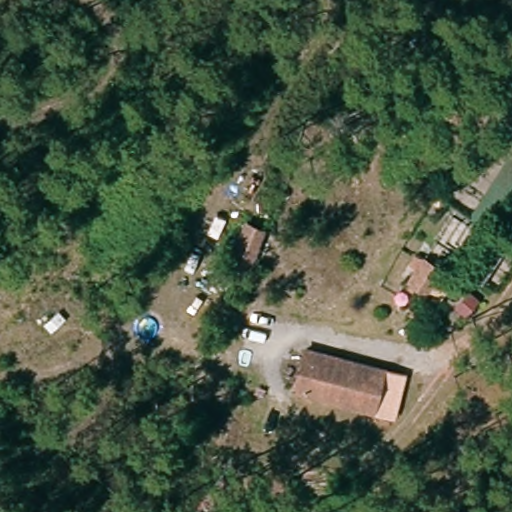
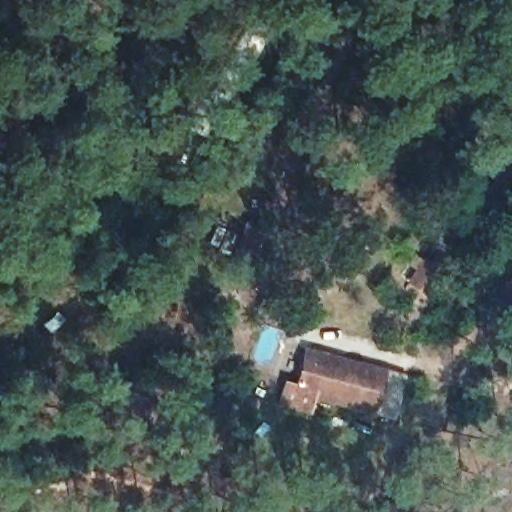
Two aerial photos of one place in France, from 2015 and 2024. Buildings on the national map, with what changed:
unchanged [(262,228),(246,274),(220,255),(235,212),(262,228)]
unchanged [(406,274),(427,291),(414,309),(392,293),(406,274)]
unchanged [(396,379),(386,415),(285,384),(297,352),(396,379)]

